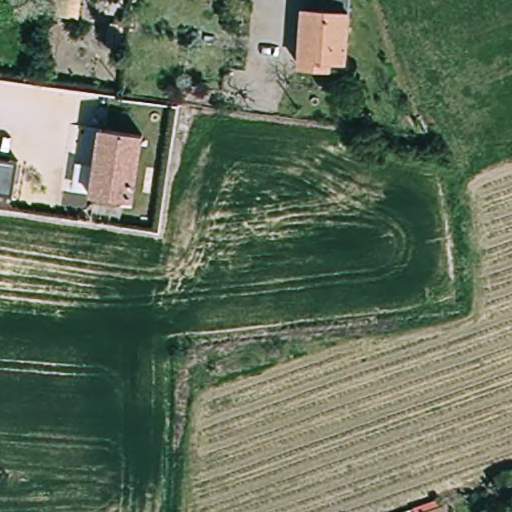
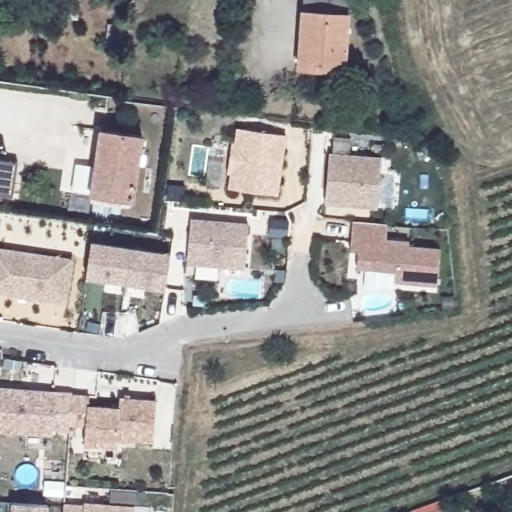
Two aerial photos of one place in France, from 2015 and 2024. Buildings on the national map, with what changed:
unchanged [(125,0),(120,24),(102,26),(106,0),(125,0)]
unchanged [(299,69),(303,11),(303,0),(349,0),(348,14),(345,64),(344,72),(323,70),(299,69)]
new [(229,143),(232,143),(234,128),(284,134),(277,195),(227,189),(229,174),(226,174),(229,143)]
unchanged [(142,135),(133,201),(89,195),(99,129),(142,135)]
new [(326,153),(379,157),(375,207),(322,203),(326,153)]
unchanged [(16,166),(12,198),(0,196),(0,164),(16,166)]
new [(184,185),(183,200),(169,198),(170,184),(184,185)]
new [(286,221),(285,236),(270,235),(271,220),(286,221)]
new [(190,221),(248,225),(244,268),(186,263),(190,221)]
new [(351,221),(386,223),(384,239),(408,241),(408,245),(440,248),(438,284),(395,281),(395,271),(356,268),(357,250),(349,250),(351,221)]
new [(90,242),(169,254),(164,288),(85,277),(90,242)]
new [(74,257),(67,304),(0,294),(0,248),(74,257)]
new [(71,393),(68,424),(68,430),(52,429),(52,435),(0,431),(0,388),(71,393)]
new [(71,393),(88,395),(87,405),(117,407),(118,397),(154,400),(151,442),(116,439),(115,446),(83,443),(84,425),(68,424),(71,393)]
unchanged [(413,510),(439,501),(442,509),(445,508),(446,512),(413,512),(413,510)]
new [(11,502),(46,505),(45,512),(10,512),(11,502)]
new [(62,503),(82,505),(82,503),(132,506),(132,512),(61,512),(62,503)]

